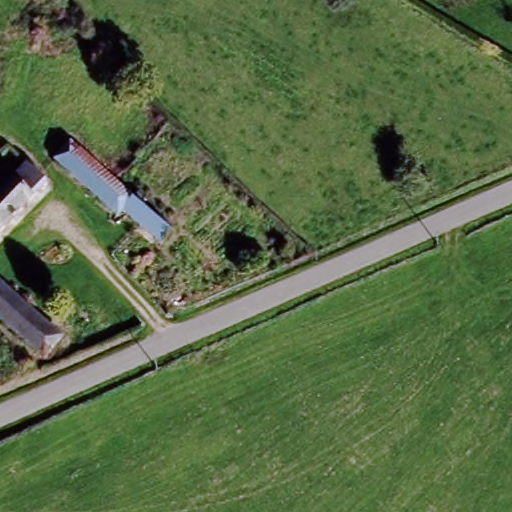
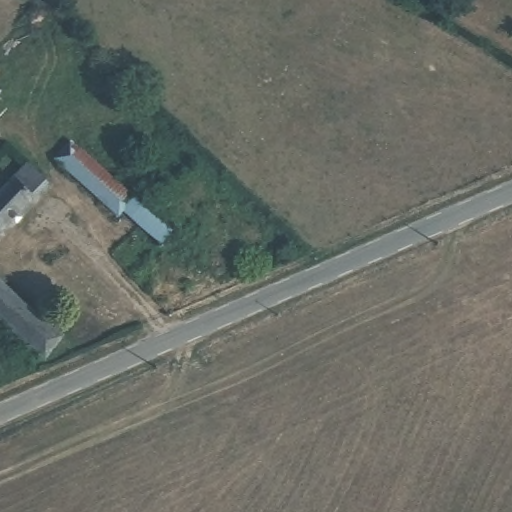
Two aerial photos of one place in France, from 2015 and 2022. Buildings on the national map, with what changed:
unchanged [(72,147),(170,230),(160,241),(122,208),(116,214),(58,164),(72,147)]
unchanged [(0,231),(0,192),(13,176),(33,192),(0,231)]
unchanged [(37,367),(0,327),(0,287),(57,349),(37,367)]

